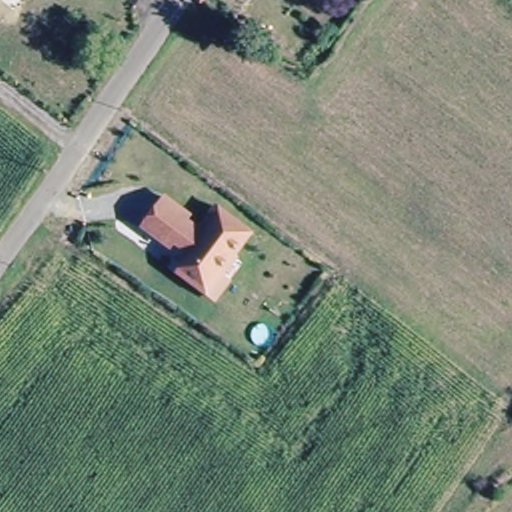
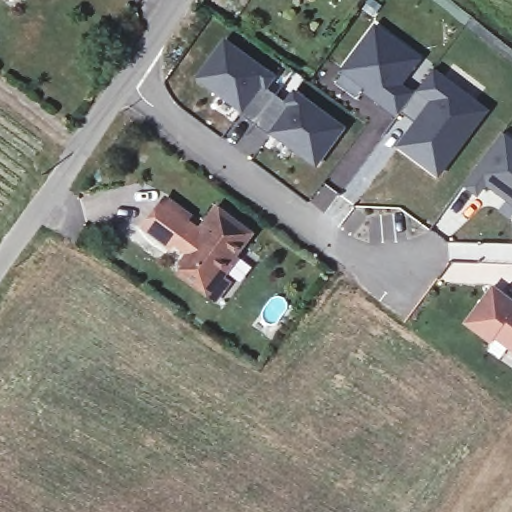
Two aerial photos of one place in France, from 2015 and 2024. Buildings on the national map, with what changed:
new [(343,70),(377,26),(421,59),(402,85),(415,95),(398,116),(372,96),(374,93),(366,86),(357,99),(337,83),(346,71),(343,70)]
new [(226,40),(276,77),(267,89),(287,103),(296,92),(345,129),(317,166),(278,137),(273,134),(271,136),(240,114),(242,110),(199,78),(226,40)]
new [(397,146),(415,121),(402,112),(415,95),(414,95),(435,67),(491,110),(439,178),(397,146)]
new [(502,134),(512,142),(512,203),(486,184),(478,195),(464,185),(502,134)]
unchanged [(202,295),(180,278),(192,261),(176,248),(172,252),(145,232),(167,203),(191,221),(187,226),(200,236),(217,213),(252,240),(235,261),(237,263),(222,283),(229,288),(216,306),(202,295)]
new [(495,337),(491,342),(466,323),(493,287),(512,302),(512,351),(495,337)]

